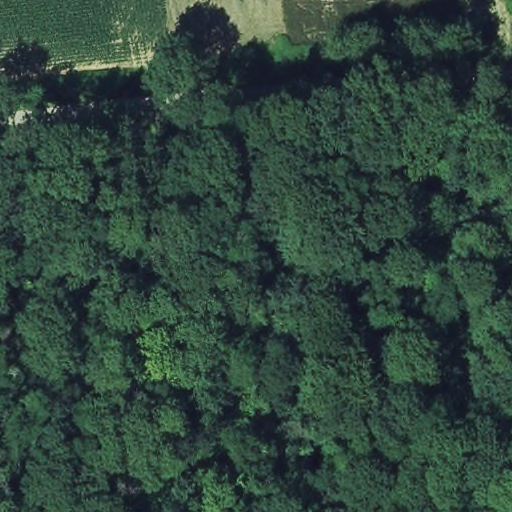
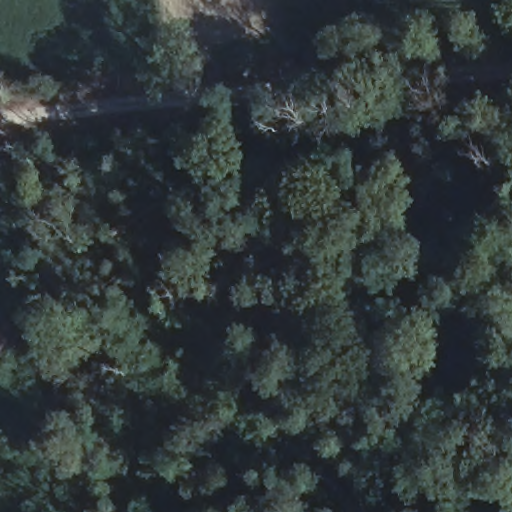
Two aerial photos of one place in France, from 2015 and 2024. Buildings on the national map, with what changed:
unchanged [(10,337),(0,340),(0,319),(5,318),(10,337)]

